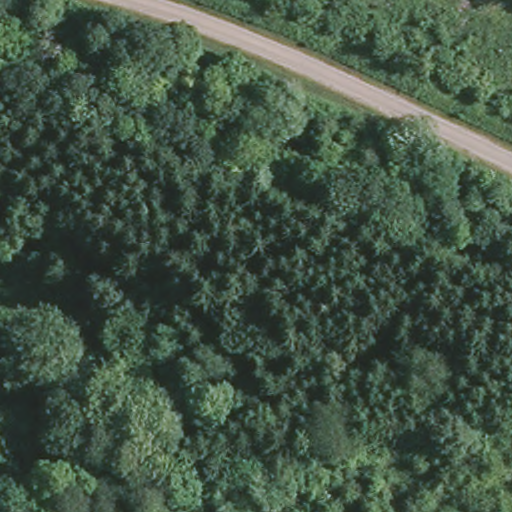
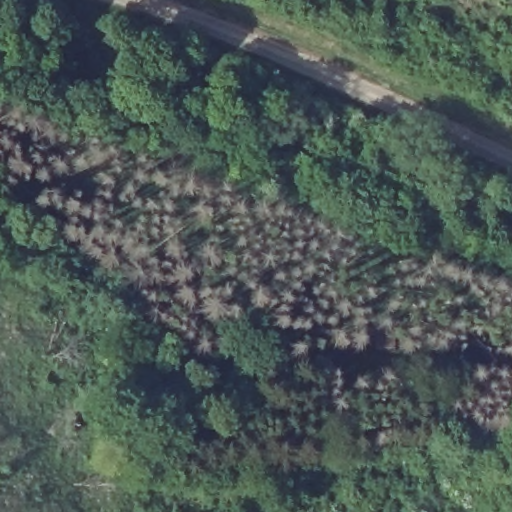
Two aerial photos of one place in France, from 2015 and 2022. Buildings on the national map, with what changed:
[]

